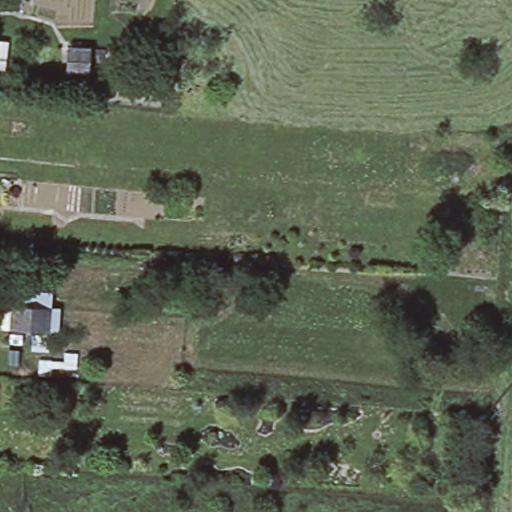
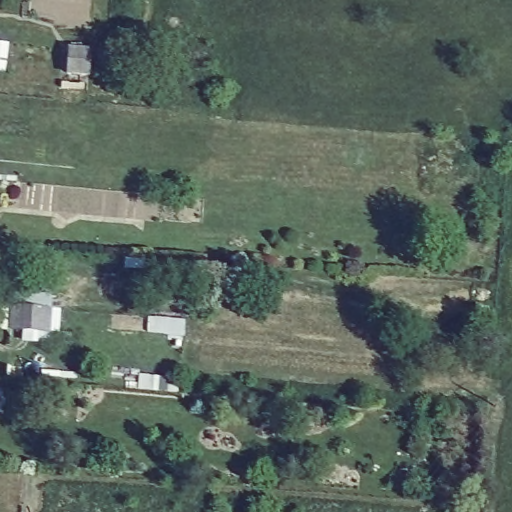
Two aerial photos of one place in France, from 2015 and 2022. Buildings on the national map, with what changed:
unchanged [(88,54),(86,77),(67,76),(69,52),(88,54)]
unchanged [(52,309),(50,331),(12,328),(14,306),(52,309)]

